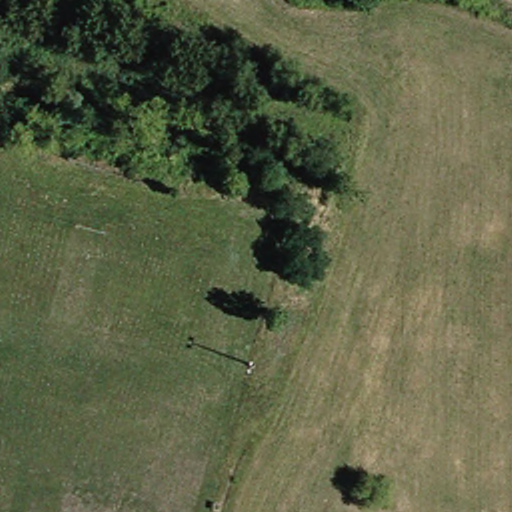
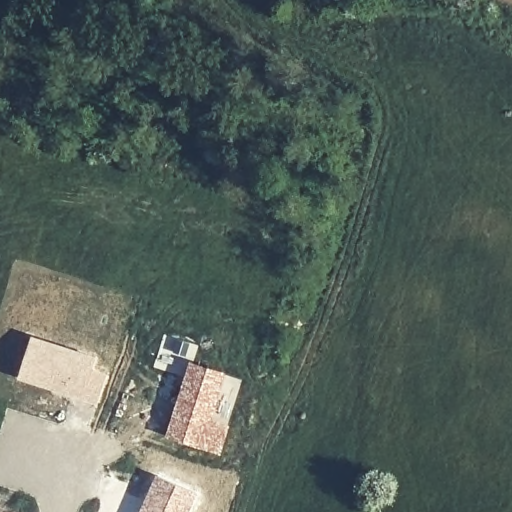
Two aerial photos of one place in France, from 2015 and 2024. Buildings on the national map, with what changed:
new [(93,368),(109,373),(99,403),(18,379),(31,335),(98,357),(93,368)]
new [(211,418),(231,425),(221,455),(165,436),(190,361),(227,372),(211,418)]
new [(190,512),(139,512),(155,473),(198,493),(190,512)]

